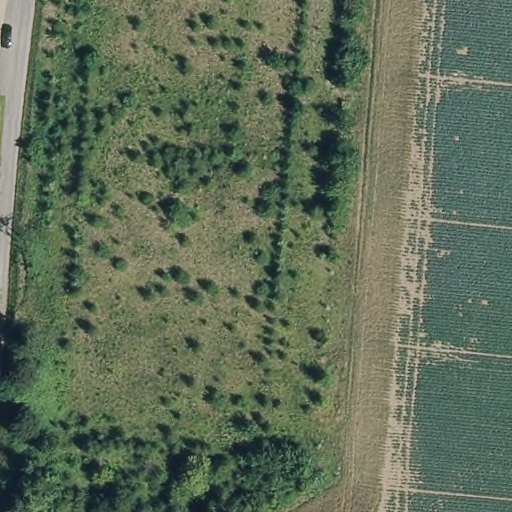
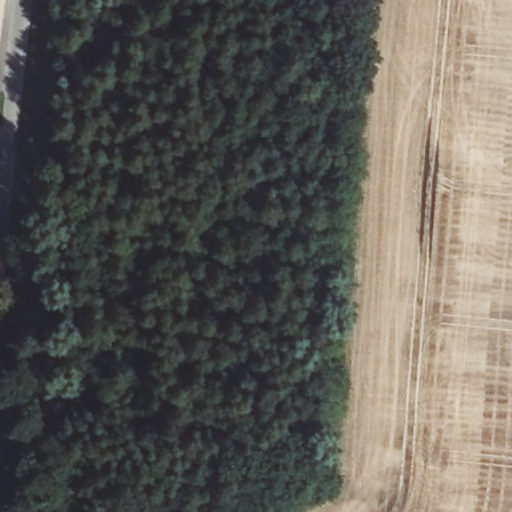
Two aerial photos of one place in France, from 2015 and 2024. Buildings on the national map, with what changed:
[]

